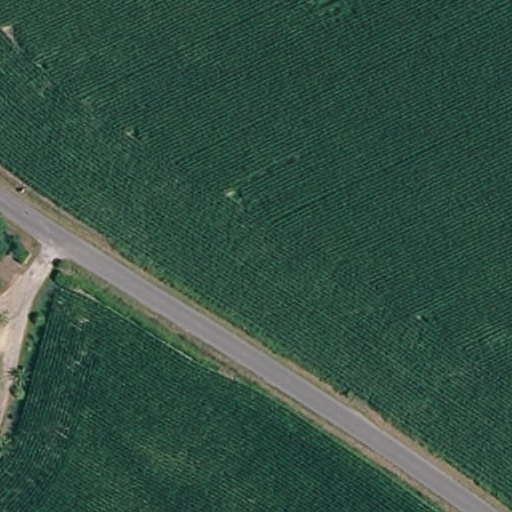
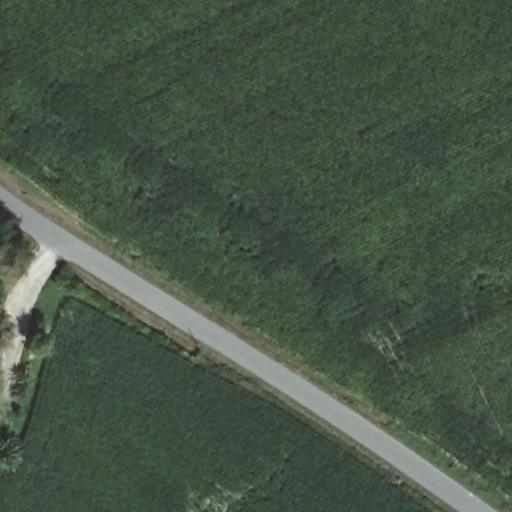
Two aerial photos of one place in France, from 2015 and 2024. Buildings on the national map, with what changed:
[]

